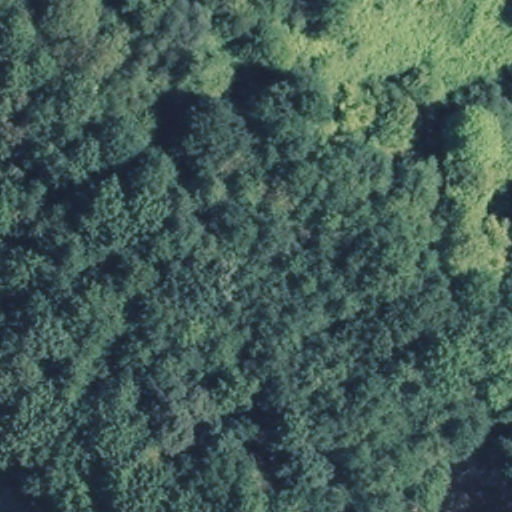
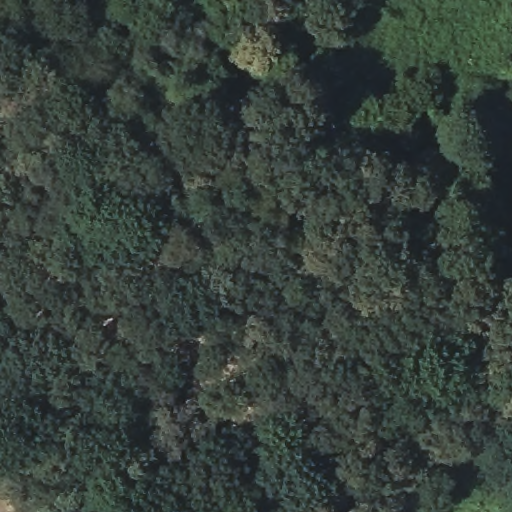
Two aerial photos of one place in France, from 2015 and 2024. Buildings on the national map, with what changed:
[]

